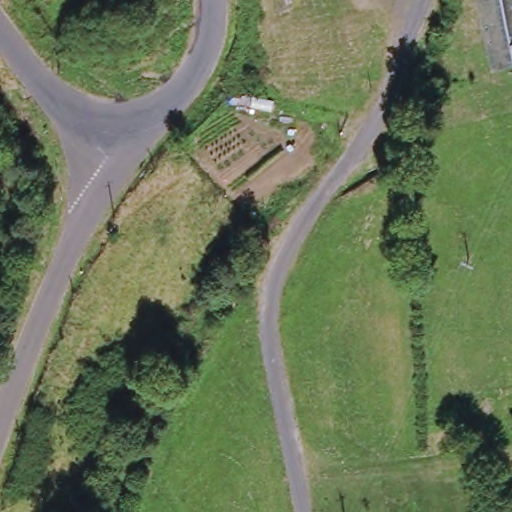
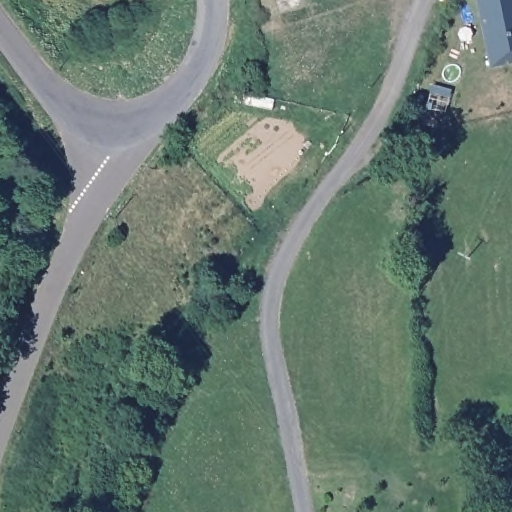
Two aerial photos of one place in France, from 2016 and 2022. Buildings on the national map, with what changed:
unchanged [(479,0),(512,0),(512,64),(494,67),(479,0)]

